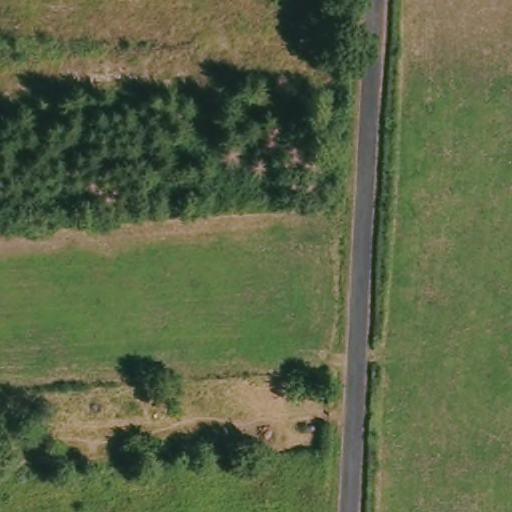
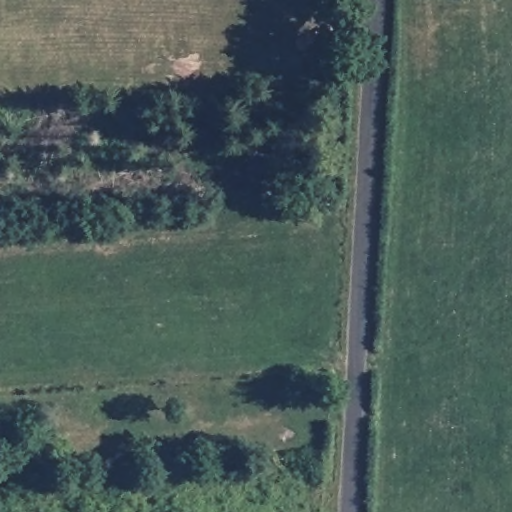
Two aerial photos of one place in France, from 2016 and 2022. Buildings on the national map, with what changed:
[]

